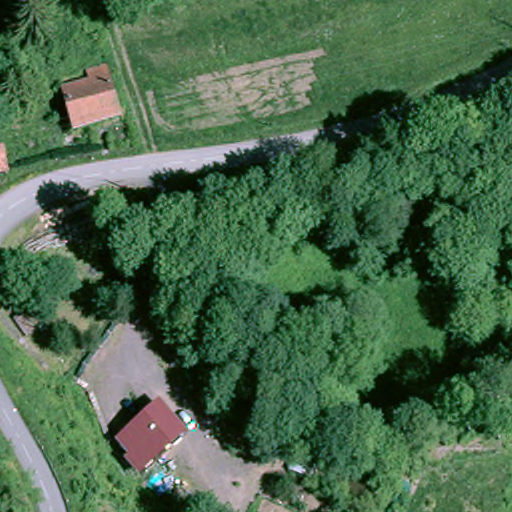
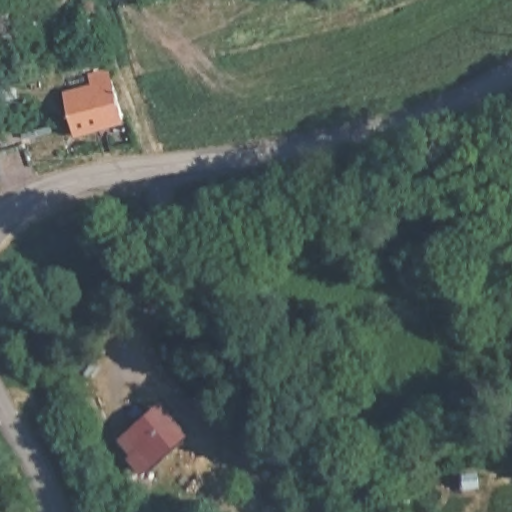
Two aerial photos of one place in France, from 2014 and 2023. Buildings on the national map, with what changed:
unchanged [(72,115),(69,98),(92,92),(90,79),(112,74),(127,123),(76,134),(54,139),(49,121),(72,115)]
unchanged [(148,472),(135,460),(139,456),(125,443),(134,433),(158,407),(185,432),(167,451),(148,472)]

